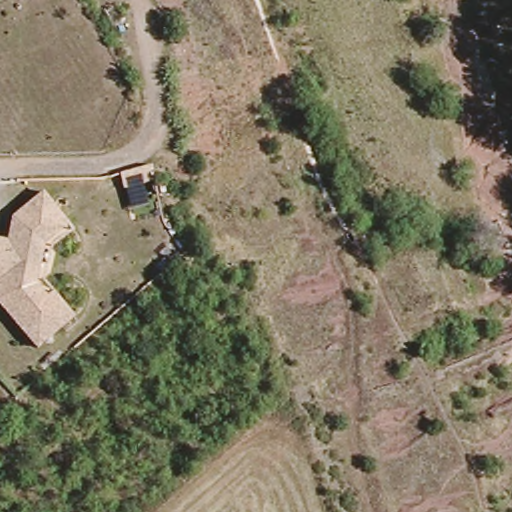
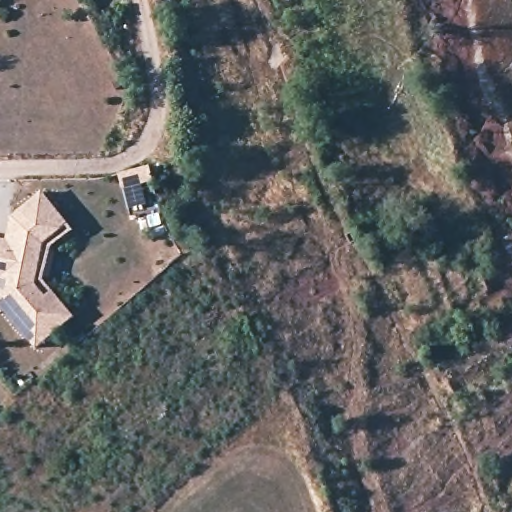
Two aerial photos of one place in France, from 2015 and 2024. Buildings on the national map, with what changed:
unchanged [(9,220),(43,192),(74,235),(45,252),(42,286),(73,322),(38,355),(0,312),(0,239),(8,240),(9,220)]

